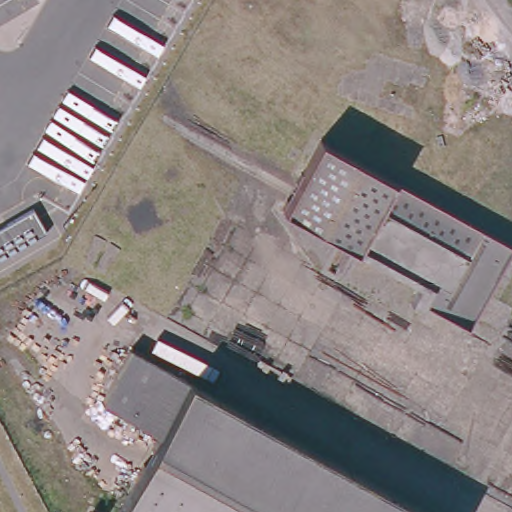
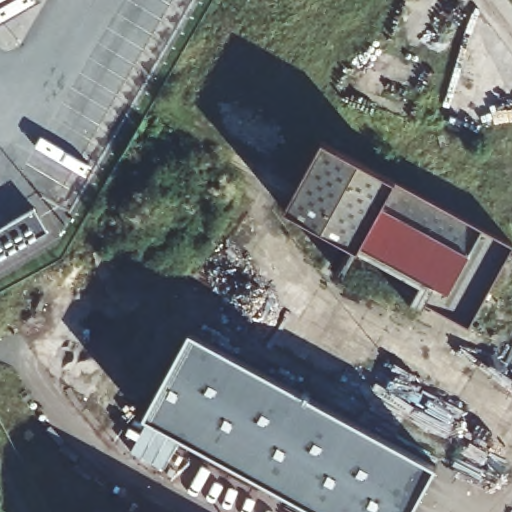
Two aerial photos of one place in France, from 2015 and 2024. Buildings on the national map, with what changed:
unchanged [(459,320),(419,298),(416,303),(403,295),(411,281),(350,246),(340,264),(331,259),(342,239),(281,204),(321,133),(437,198),(441,200),(443,207),(444,212),(466,302),(462,321),(459,320)]
unchanged [(471,329),(465,326),(469,303),(445,206),(512,245),(512,252),(471,329)]
unchanged [(37,207),(51,231),(0,260),(0,228),(37,207)]
new [(410,512),(313,512),(143,419),(185,337),(432,468),(410,512)]
demolished [(99,397),(127,348),(188,380),(429,510),(433,512),(116,512),(155,431),(99,397)]

